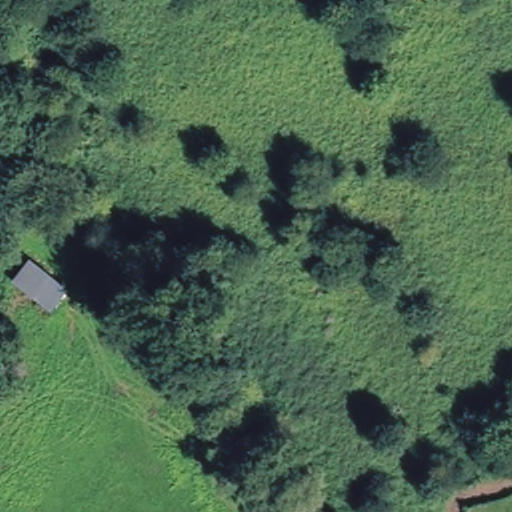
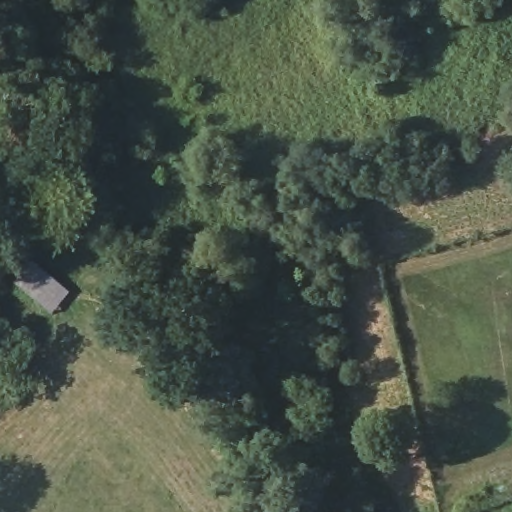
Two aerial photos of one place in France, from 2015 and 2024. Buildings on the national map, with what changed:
unchanged [(20,262),(58,292),(40,315),(2,284),(20,262)]

